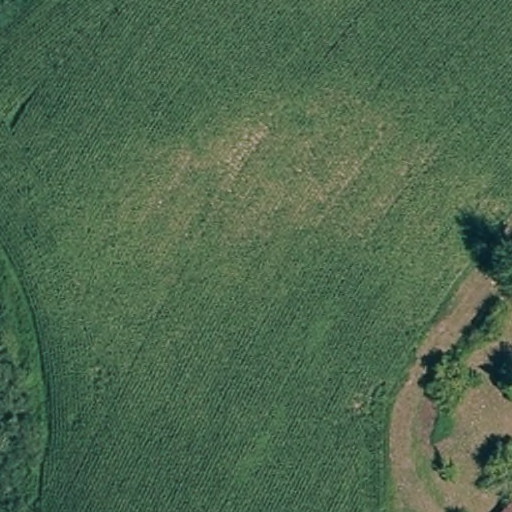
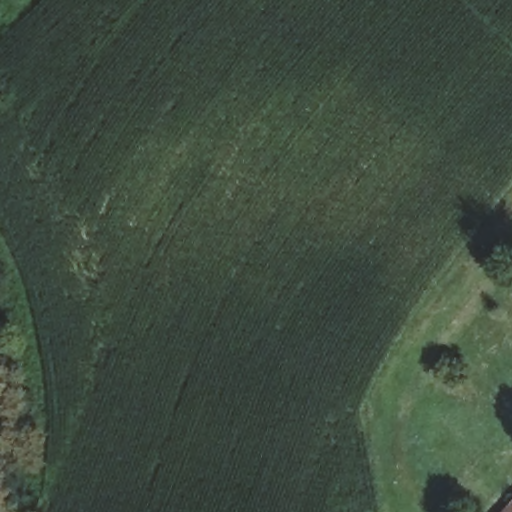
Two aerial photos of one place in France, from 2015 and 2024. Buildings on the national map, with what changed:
unchanged [(512,500),(512,512),(498,512),(512,500)]

